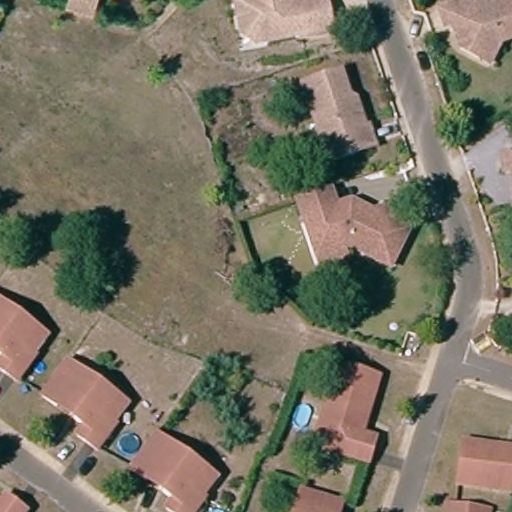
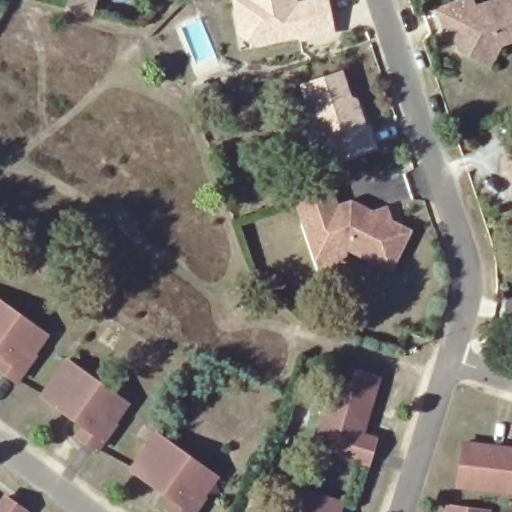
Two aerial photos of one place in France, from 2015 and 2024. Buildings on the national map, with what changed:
unchanged [(71,0),(96,0),(94,6),(71,0)]
unchanged [(236,6),(234,0),(325,0),(329,22),(297,28),(297,24),(264,29),(252,31),(238,21),(236,6)]
unchanged [(457,33),(452,16),(450,9),(442,11),(439,0),(512,0),(512,24),(497,29),(486,49),(476,43),(457,33)]
unchanged [(298,74),(336,62),(348,100),(355,104),(359,119),(363,118),(369,137),(322,152),(311,155),(305,136),(317,133),(298,74)]
unchanged [(497,141),(512,140),(512,186),(511,185),(510,178),(507,158),(499,159),(497,141)]
unchanged [(318,259),(315,248),(296,189),(300,188),(330,179),(336,198),(352,193),(367,200),(372,203),(386,200),(389,213),(407,222),(388,259),(347,238),(342,239),(346,251),(318,259)]
unchanged [(36,352),(37,354),(20,378),(0,364),(7,354),(0,349),(0,297),(40,326),(50,333),(36,352)]
unchanged [(115,422),(117,424),(99,448),(80,434),(86,424),(77,417),(79,413),(62,400),(59,404),(45,394),(71,359),(120,396),(129,403),(115,422)]
unchanged [(318,439),(341,367),(382,379),(376,397),(372,396),(363,422),(368,424),(363,437),(377,441),(370,464),(341,456),(316,448),(318,439)]
unchanged [(209,497),(211,498),(200,512),(178,512),(173,508),(180,499),(170,491),(172,487),(156,474),(152,479),(138,469),(164,434),(213,470),(222,477),(209,497)]
unchanged [(465,441),(483,444),(482,448),(510,452),(511,447),(512,447),(512,490),(459,483),(465,441)]
unchanged [(302,492),(343,504),(341,512),(296,512),(302,492)]
unchanged [(7,504),(17,512),(1,512),(7,504)]
unchanged [(447,504),(490,510),(489,512),(446,512),(447,504)]

